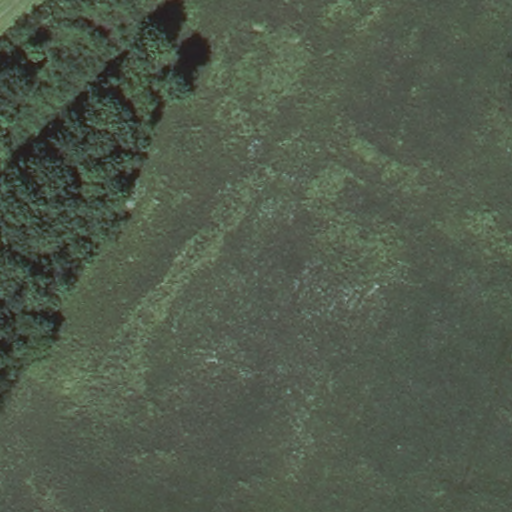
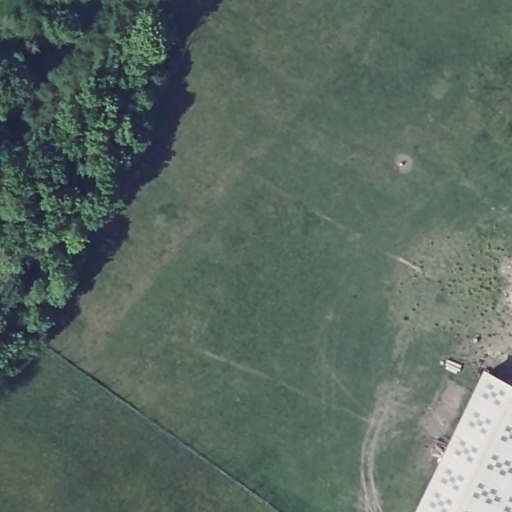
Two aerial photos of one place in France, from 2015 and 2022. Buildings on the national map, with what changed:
new [(488,368),(512,379),(512,512),(418,512),(488,368)]

